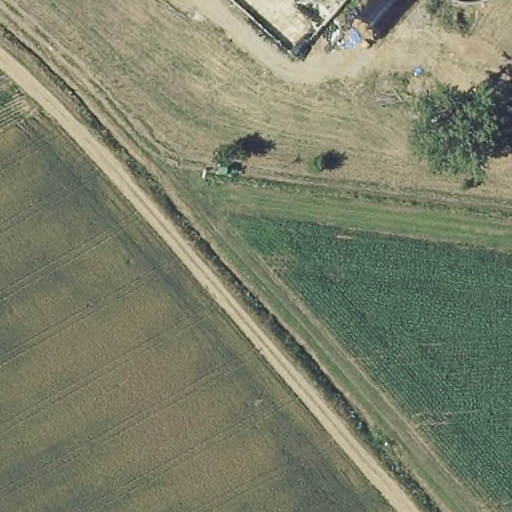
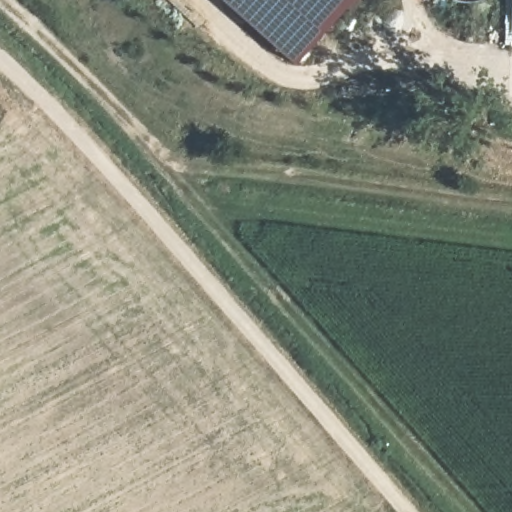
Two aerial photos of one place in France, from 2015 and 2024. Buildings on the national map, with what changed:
new [(220,0),(355,0),(294,68),(220,0)]

